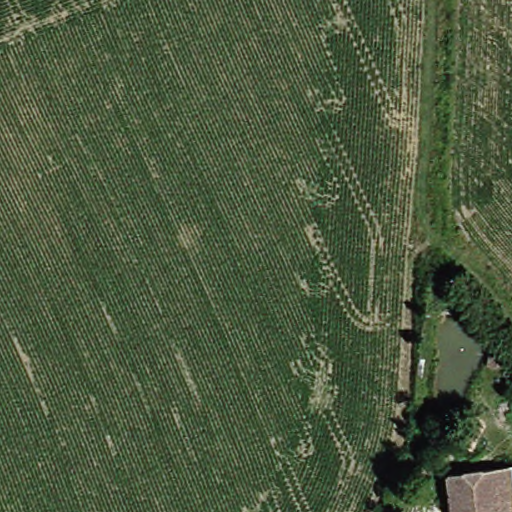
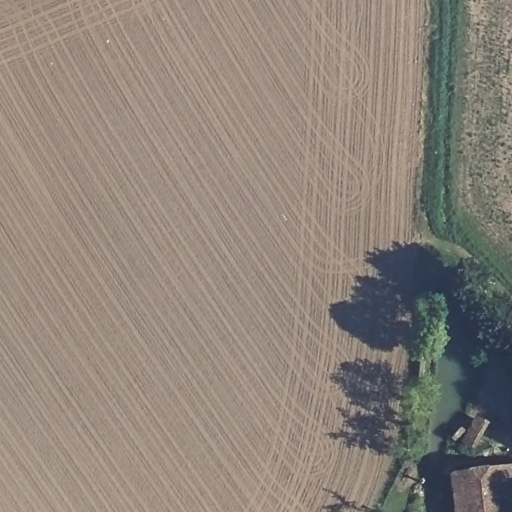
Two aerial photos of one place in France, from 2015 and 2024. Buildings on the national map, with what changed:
unchanged [(512,512),(508,512),(503,470),(512,469),(512,512)]
unchanged [(503,470),(508,512),(450,512),(448,472),(503,470)]

